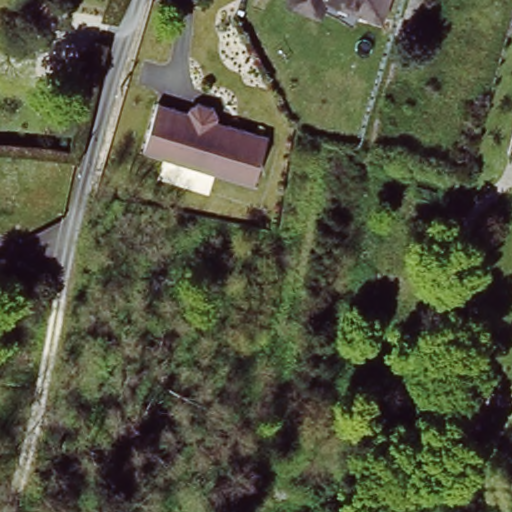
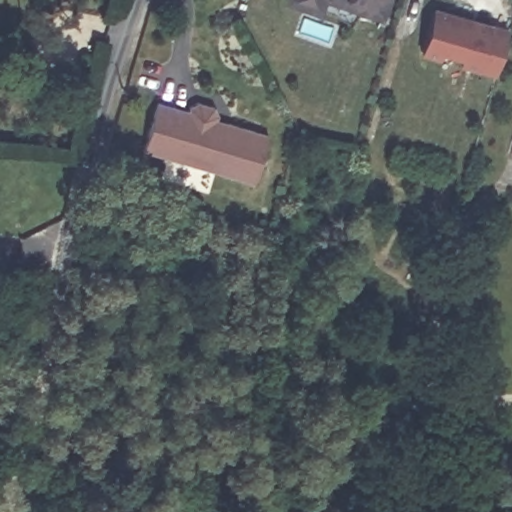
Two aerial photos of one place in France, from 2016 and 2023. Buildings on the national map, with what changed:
new [(286,0),(319,0),(316,9),(286,0)]
demolished [(307,0),(326,0),(324,5),(307,0)]
new [(346,0),(382,0),(379,10),(346,0)]
demolished [(367,0),(389,0),(387,6),(367,0)]
new [(432,11),(507,31),(495,72),(460,62),(461,57),(441,52),(440,57),(421,51),(432,11)]
unchanged [(187,113),(190,105),(196,102),(212,107),(217,114),(216,121),(266,136),(253,183),(140,150),(155,102),(187,113)]

